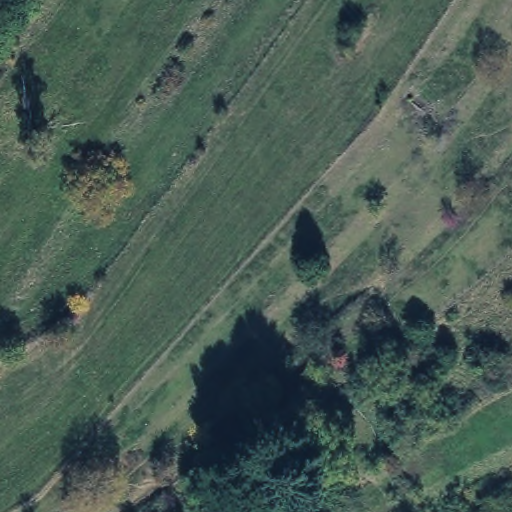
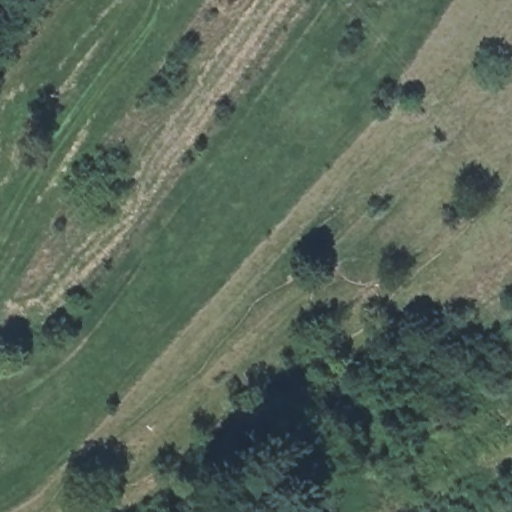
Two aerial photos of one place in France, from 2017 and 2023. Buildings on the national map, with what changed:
[]

